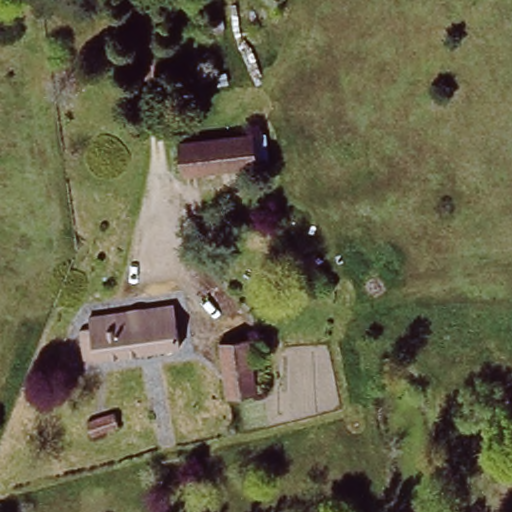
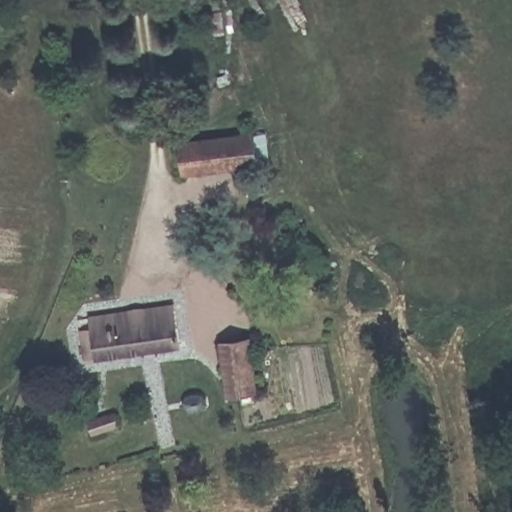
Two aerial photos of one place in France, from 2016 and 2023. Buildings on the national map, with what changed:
unchanged [(256,137),(259,169),(183,175),(179,146),(256,137)]
unchanged [(146,311),(148,323),(178,321),(181,348),(96,360),(93,356),(83,357),(79,331),(92,330),(91,318),(146,311)]
unchanged [(227,396),(223,363),(221,342),(250,339),(253,360),(256,392),(227,396)]
unchanged [(118,410),(123,423),(95,433),(90,419),(118,410)]

